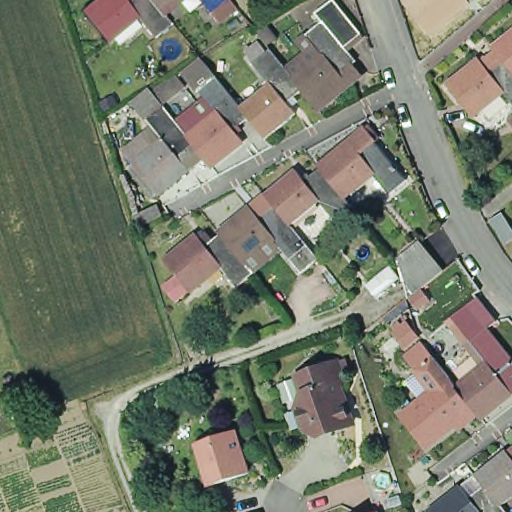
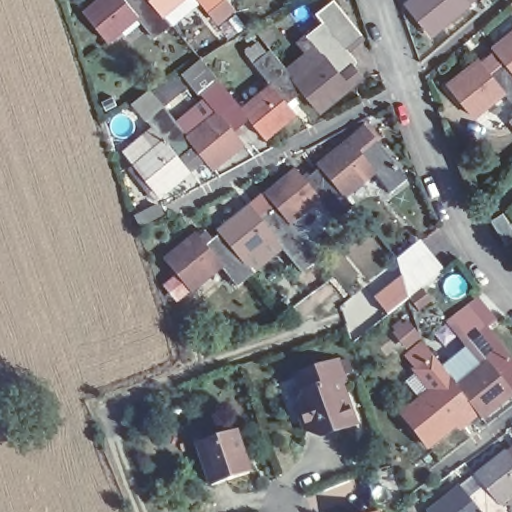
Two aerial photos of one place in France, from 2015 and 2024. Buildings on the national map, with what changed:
unchanged [(160,10),(167,17),(167,16),(176,27),(160,41),(142,21),(112,45),(87,14),(103,0),(153,0),(160,10)]
unchanged [(167,16),(167,17),(160,10),(153,0),(187,0),(167,16)]
unchanged [(201,0),(229,0),(230,2),(238,11),(222,25),(212,14),(201,0)]
unchanged [(415,7),(422,0),(488,0),(479,8),(441,39),(415,7)]
unchanged [(325,115),(325,114),(310,97),(307,93),(308,92),(307,91),(302,86),(300,82),(328,59),(312,40),(328,27),(321,19),(338,5),(366,39),(350,52),(361,66),(357,69),(367,80),(355,90),(325,115)]
unchanged [(509,96),(479,120),(455,90),(485,64),(487,66),(502,55),(500,52),(512,42),(512,100),(509,96)]
unchanged [(282,62),(283,62),(298,80),(300,82),(302,86),(307,91),(308,92),(307,93),(292,106),(301,117),(271,142),(266,136),(264,134),(253,121),(254,120),(253,119),(247,112),(246,111),(247,110),(274,87),(258,67),(260,66),(252,56),(263,47),(271,56),(275,52),(282,62)]
unchanged [(137,165),(127,154),(157,129),(150,121),(137,104),(154,91),(155,92),(182,80),(190,90),(167,107),(172,113),(177,119),(185,128),(212,105),(204,95),(188,76),(205,62),(215,72),(222,80),(225,85),(228,89),(240,102),(247,110),(246,111),(247,112),(253,119),(254,120),(253,121),(238,134),(247,144),(217,169),(210,161),(208,159),(193,172),(164,196),(137,165)]
unchanged [(395,197),(378,177),(350,201),(349,201),(345,197),(338,189),(325,172),(323,171),(353,146),(370,133),(378,145),(412,184),(395,197)]
unchanged [(250,265),(244,258),(225,236),(225,237),(224,235),(254,211),(270,198),(270,197),(299,174),(309,186),(325,172),(338,189),(345,197),(349,201),(350,201),(358,212),(341,226),(323,205),(296,227),(312,248),(323,261),(324,262),(307,276),(295,262),(278,241),(250,265)]
unchanged [(492,220),(503,212),(512,226),(512,240),(507,244),(492,220)]
unchanged [(225,269),(195,293),(170,262),(200,237),(203,241),(211,234),(218,242),(225,237),(225,236),(244,258),(250,265),(258,276),(242,290),(225,269)]
unchanged [(442,266),(407,293),(403,276),(397,254),(418,236),(432,252),(442,266)]
unchanged [(366,278),(390,259),(400,272),(375,291),(366,278)]
unchanged [(180,278),(193,294),(182,302),(170,287),(180,278)]
unchanged [(473,427),(442,452),(417,421),(447,397),(431,377),(420,362),(423,360),(437,348),(448,362),(472,392),(500,368),(484,347),(500,335),(512,349),(512,412),(496,426),(491,420),(477,432),(473,427)]
unchanged [(392,353),(408,341),(417,352),(418,353),(402,367),(401,366),(392,353)]
unchanged [(293,373),(335,358),(341,377),(337,377),(350,423),(315,434),(303,427),(294,405),(300,393),(293,373)]
unchanged [(215,489),(203,451),(240,439),(250,477),(215,489)]
unchanged [(484,476),(512,453),(512,507),(512,508),(512,512),(438,512),(469,487),(484,476)]

